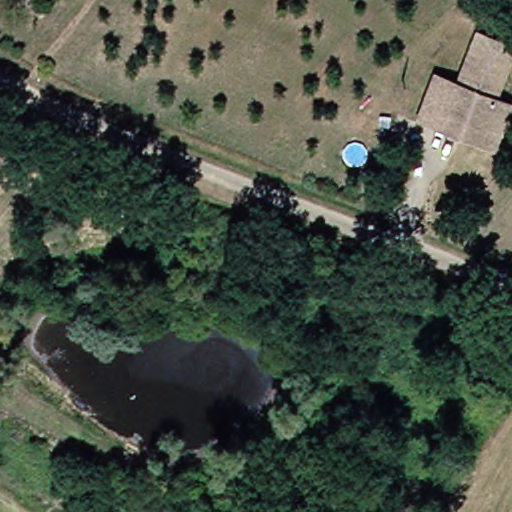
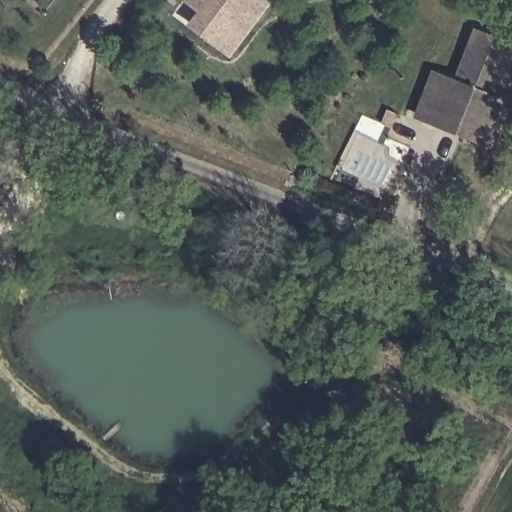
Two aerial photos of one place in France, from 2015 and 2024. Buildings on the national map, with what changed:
new [(229,54),(187,23),(196,11),(182,0),(270,0),(229,54)]
unchanged [(512,87),(509,95),(512,97),(512,115),(498,148),(418,113),(437,67),(462,77),(482,24),(512,36),(512,87)]

